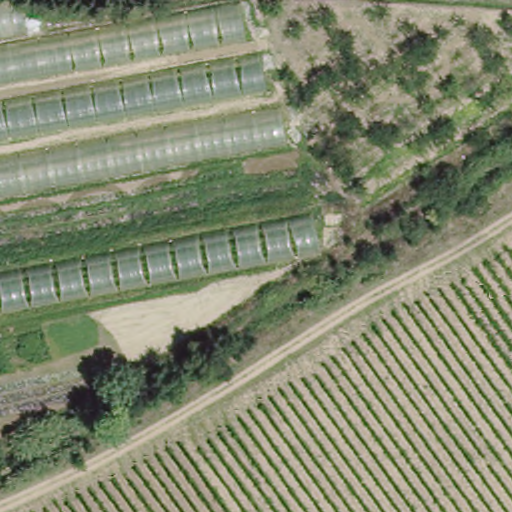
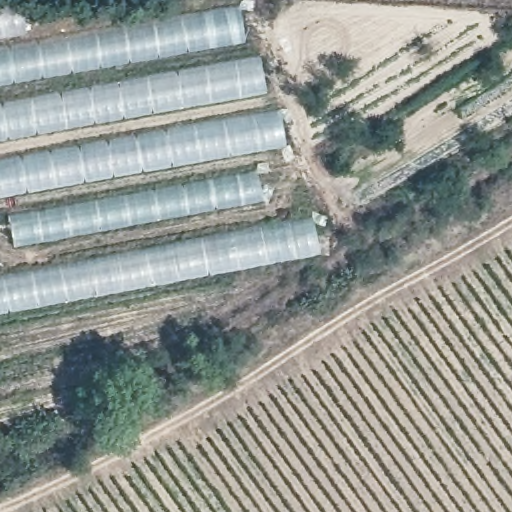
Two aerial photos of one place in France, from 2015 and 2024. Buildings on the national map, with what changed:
demolished [(25,30),(0,33),(0,0),(18,0),(25,30)]
unchanged [(240,6),(251,55),(262,55),(270,109),(280,109),(285,146),(0,196),(0,48),(240,6)]
new [(258,168),(267,201),(11,249),(5,214),(258,168)]
unchanged [(318,217),(325,255),(0,314),(0,275),(318,217)]

